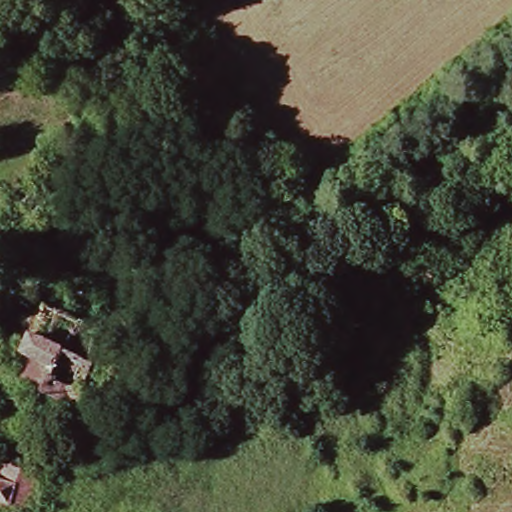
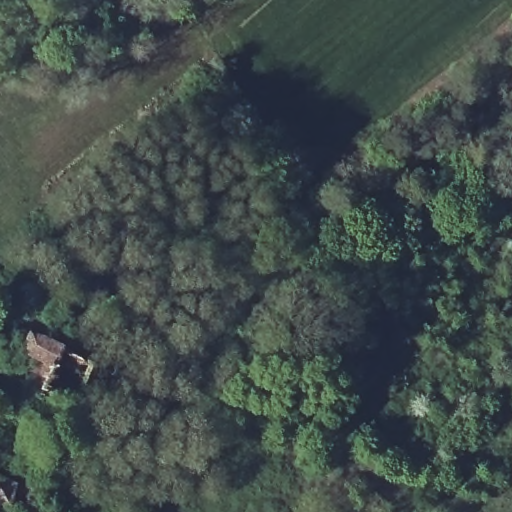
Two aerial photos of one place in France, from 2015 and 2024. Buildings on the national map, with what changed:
unchanged [(47,386),(57,361),(27,347),(51,297),(107,326),(93,358),(104,366),(84,412),(47,386)]
unchanged [(0,335),(0,315),(4,316),(0,335)]
unchanged [(4,477),(16,445),(56,461),(43,492),(4,477)]
unchanged [(1,512),(0,512),(0,475),(4,477),(43,492),(37,506),(15,500),(10,512),(1,512)]

